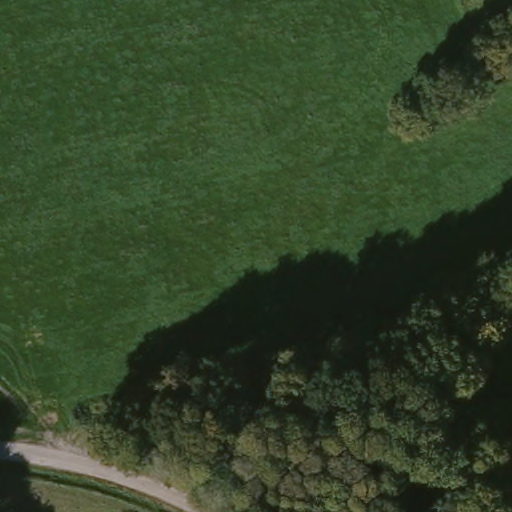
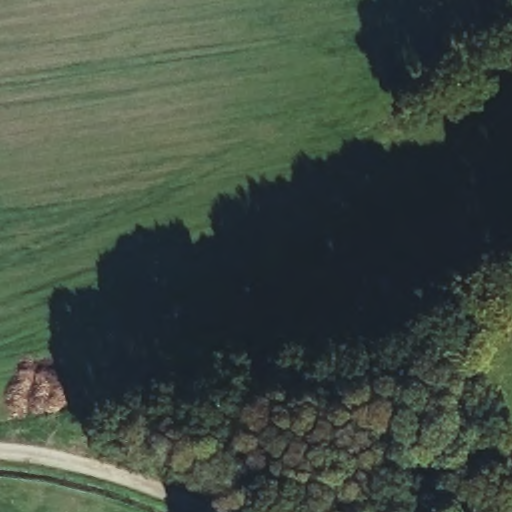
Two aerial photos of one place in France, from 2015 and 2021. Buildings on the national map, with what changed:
[]

